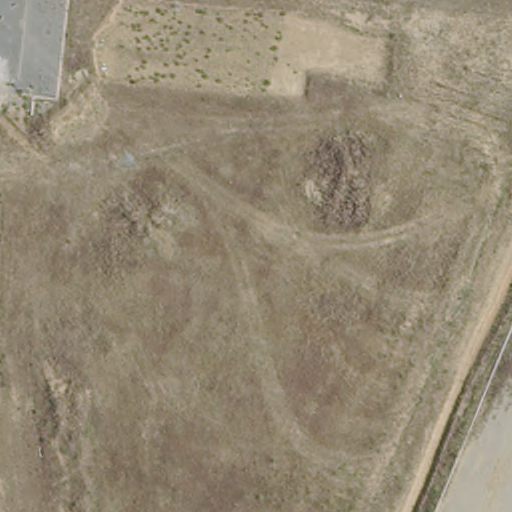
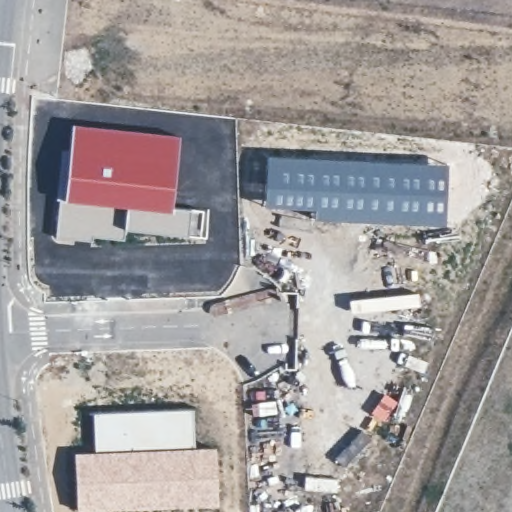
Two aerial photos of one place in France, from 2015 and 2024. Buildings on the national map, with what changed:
new [(58,198),(62,198),(72,124),(181,135),(173,204),(210,209),(206,242),(125,231),(125,242),(92,239),(91,242),(54,242),(58,198)]
new [(265,152),(394,157),(448,163),(445,226),(312,220),(312,210),(262,207),(265,152)]
new [(192,408),(194,447),(93,451),(91,412),(192,408)]
new [(93,451),(194,447),(215,447),(216,507),(75,511),(72,452),(93,451)]

